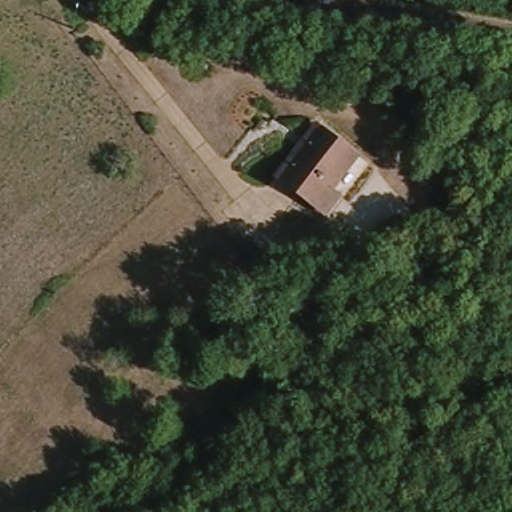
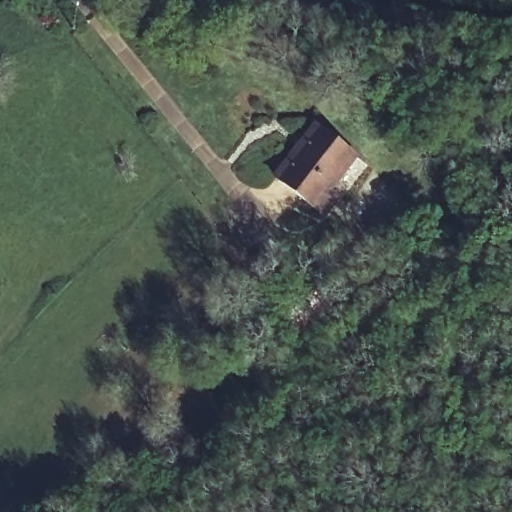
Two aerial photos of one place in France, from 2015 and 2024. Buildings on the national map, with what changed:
unchanged [(330,208),(316,224),(273,190),(286,172),(312,141),(321,147),(356,178),(330,208)]

